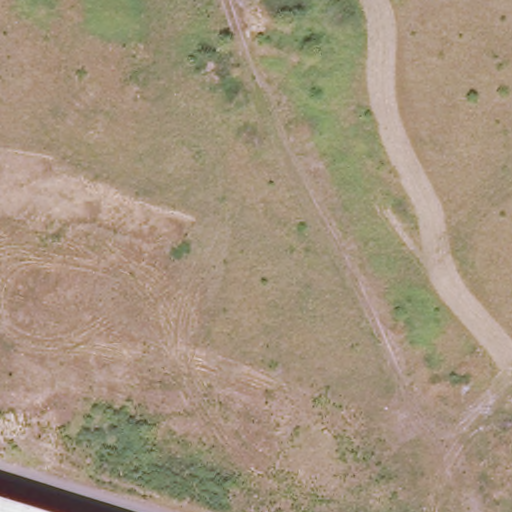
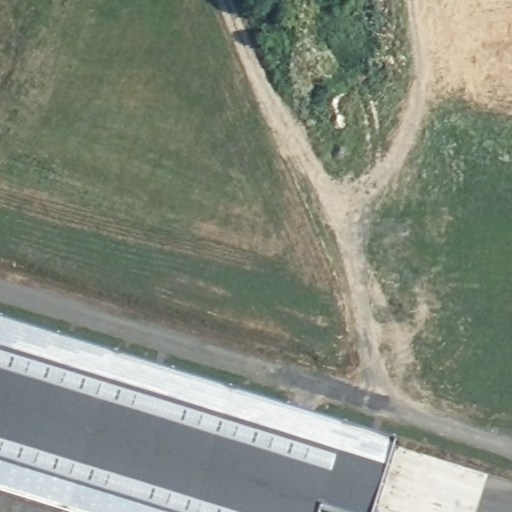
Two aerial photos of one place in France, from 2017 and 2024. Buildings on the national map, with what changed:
new [(0,323),(392,444),(372,512),(41,512),(0,499),(0,323)]
unchanged [(0,512),(0,499),(41,512),(0,512)]

